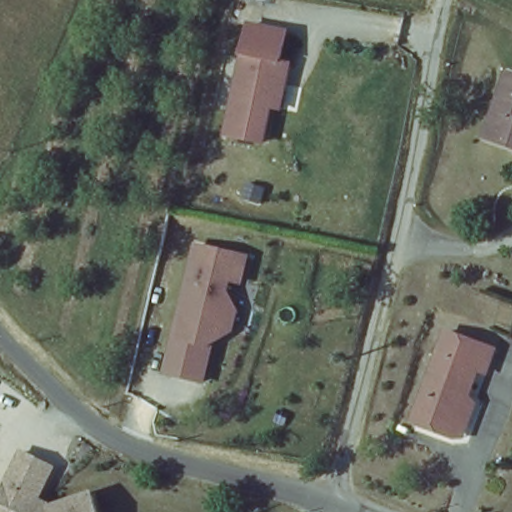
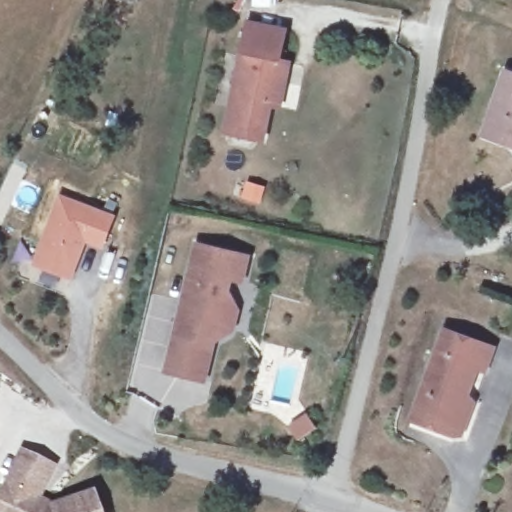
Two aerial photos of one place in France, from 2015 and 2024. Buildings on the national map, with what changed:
unchanged [(292,35),(285,67),(291,68),(283,112),(272,113),(266,145),(222,136),(246,26),(292,35)]
unchanged [(501,72),(512,76),(512,147),(479,136),(501,72)]
new [(85,244),(72,279),(31,266),(58,194),(117,214),(104,251),(85,244)]
unchanged [(247,253),(244,281),(226,280),(222,295),(234,308),(229,330),(208,341),(200,383),(160,370),(188,242),(247,253)]
unchanged [(429,330),(496,351),(488,376),(478,372),(454,441),(398,421),(429,330)]
unchanged [(0,512),(0,475),(15,447),(46,463),(30,495),(37,499),(45,503),(85,490),(92,512),(0,512)]

